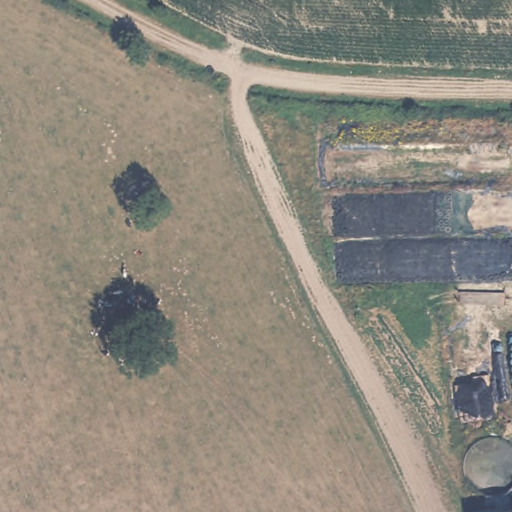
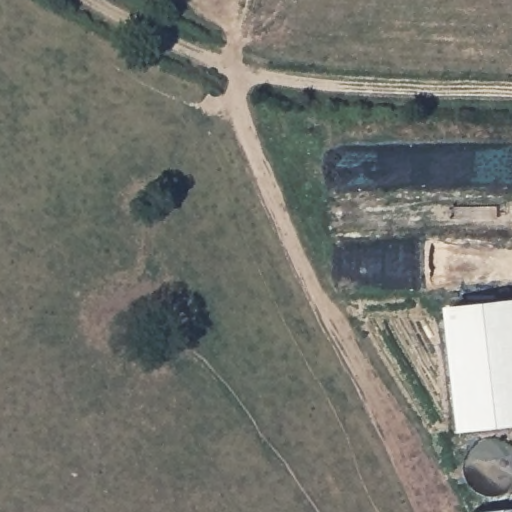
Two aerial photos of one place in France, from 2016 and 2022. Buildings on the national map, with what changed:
new [(444,306),(512,299),(512,426),(458,433),(444,306)]
unchanged [(512,511),(512,512),(507,512),(512,511)]

